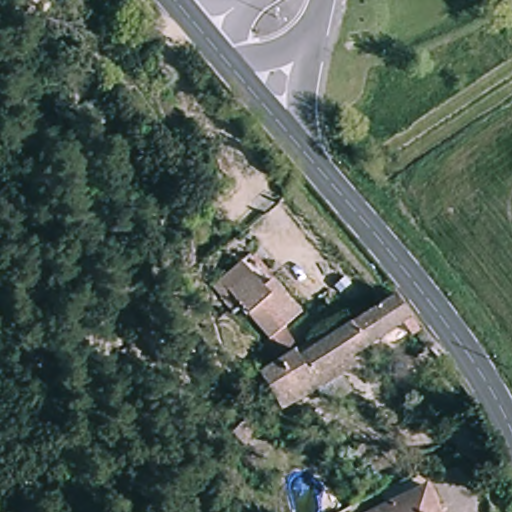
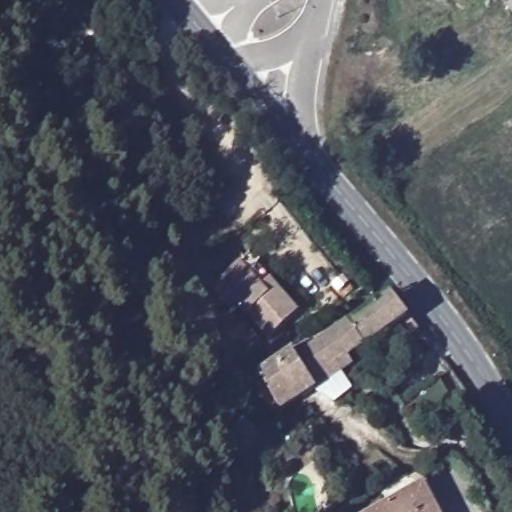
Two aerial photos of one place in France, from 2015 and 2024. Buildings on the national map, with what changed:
unchanged [(110,119),(98,126),(86,105),(98,98),(110,119)]
unchanged [(271,275),(299,307),(281,324),(294,343),(293,344),(285,349),(275,355),(264,339),(271,333),(241,300),(234,291),(234,306),(212,281),(240,256),(250,268),(264,282),(271,275)]
unchanged [(410,312),(365,341),(350,319),(394,291),(410,312)]
unchanged [(365,341),(349,351),(355,360),(342,368),(353,384),(335,396),(318,385),(316,382),(298,352),(350,319),(365,341)]
unchanged [(316,382),(281,403),(258,366),(263,363),(275,355),(285,349),(293,344),(298,352),(316,382)]
unchanged [(220,369),(208,374),(203,359),(214,354),(220,369)]
unchanged [(455,408),(420,429),(408,408),(404,400),(439,378),(455,408)]
unchanged [(258,433),(245,446),(232,433),(244,420),(258,433)]
unchanged [(437,512),(372,512),(424,487),(437,512)]

